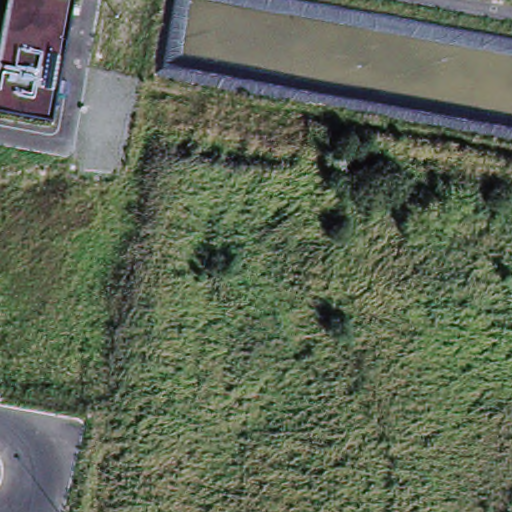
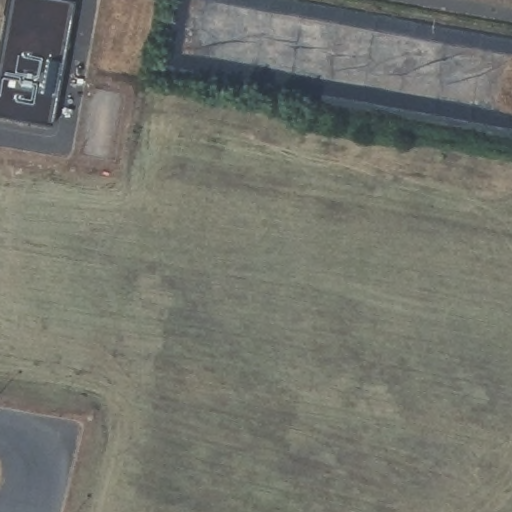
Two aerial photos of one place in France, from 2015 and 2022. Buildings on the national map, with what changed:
unchanged [(51,122),(0,111),(0,23),(4,0),(74,0),(51,122)]

